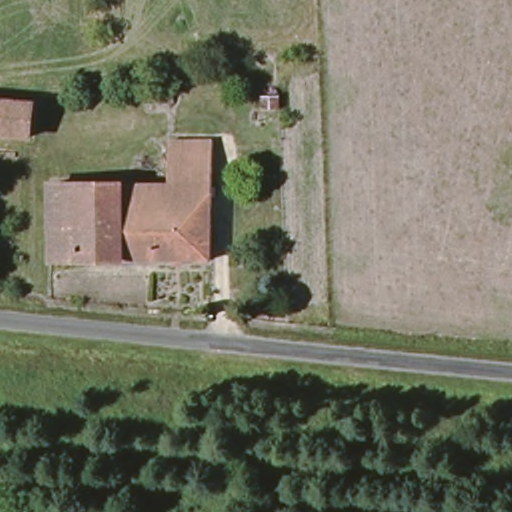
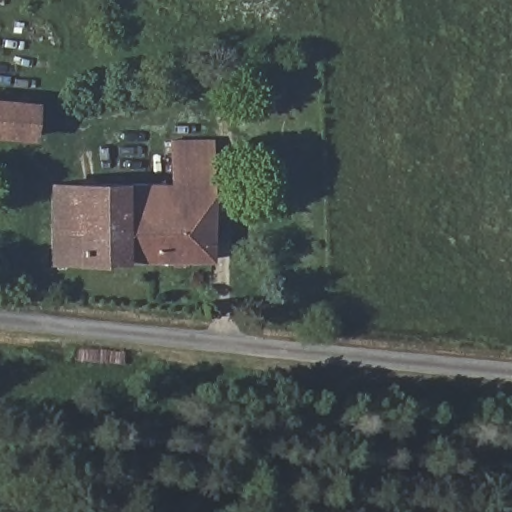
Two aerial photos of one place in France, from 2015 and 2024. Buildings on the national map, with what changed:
unchanged [(277,94),(277,106),(261,105),(262,93),(273,94),(277,94)]
unchanged [(33,139),(0,136),(0,104),(34,106),(33,139)]
unchanged [(52,261),(54,187),(173,188),(174,144),(215,144),(215,262),(52,261)]

